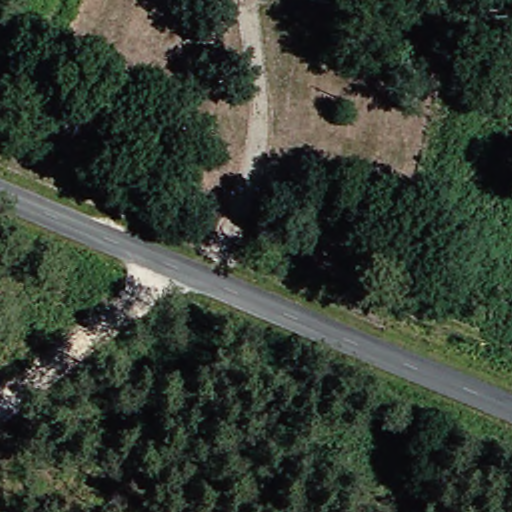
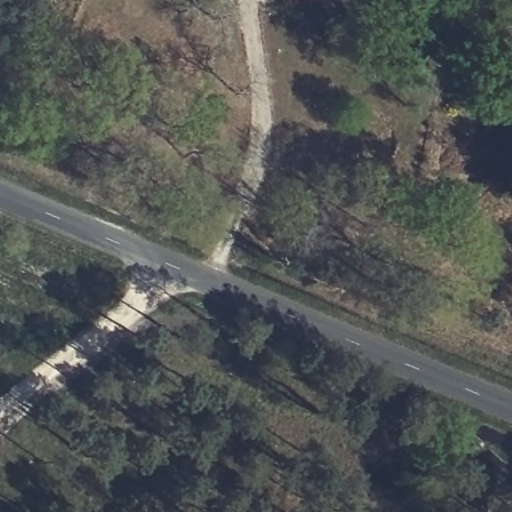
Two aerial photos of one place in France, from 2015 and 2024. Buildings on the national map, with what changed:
unchanged [(277,0),(324,0),(321,12),(277,0)]

